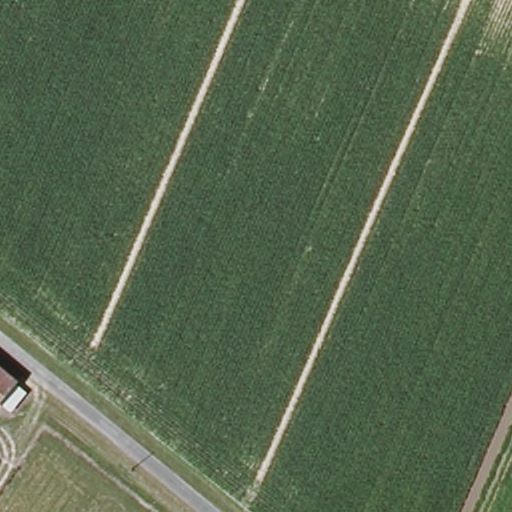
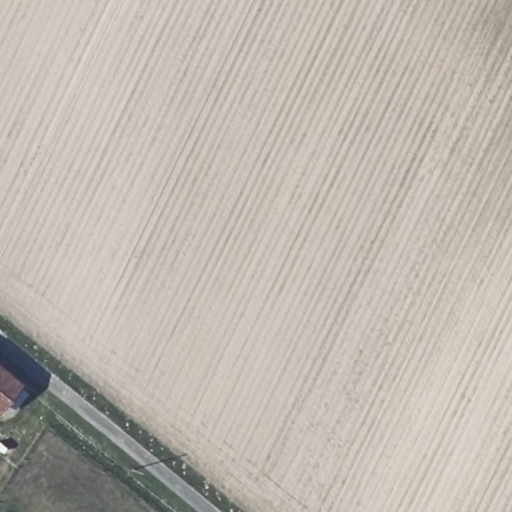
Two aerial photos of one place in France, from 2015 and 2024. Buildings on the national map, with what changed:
unchanged [(0,374),(1,375),(12,383),(0,401),(0,374)]

